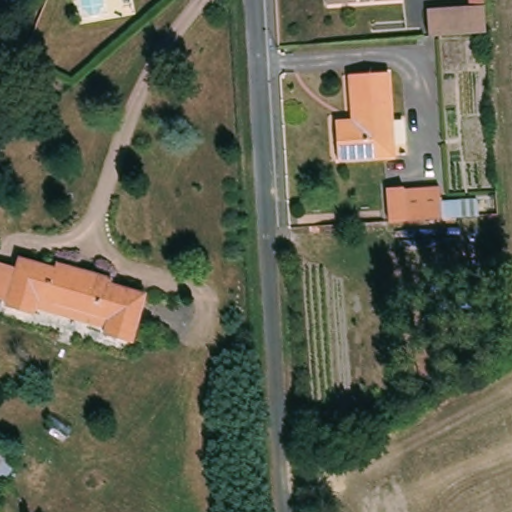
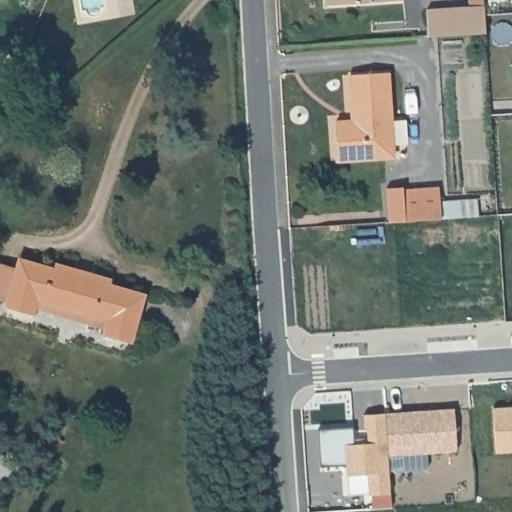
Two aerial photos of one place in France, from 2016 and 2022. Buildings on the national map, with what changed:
unchanged [(327,0),(397,0),(327,5),(327,0)]
unchanged [(470,6),(470,0),(484,0),(484,5),(470,6)]
unchanged [(484,6),(486,31),(485,31),(484,31),(483,32),(483,33),(459,35),(429,36),(427,10),(470,6),(484,6)]
unchanged [(393,156),(337,160),(335,121),(352,121),(349,74),(388,72),(393,156)]
unchanged [(7,105),(18,111),(14,120),(2,114),(7,105)]
unchanged [(483,217),(482,217),(457,218),(434,220),(420,221),(402,222),(400,188),(418,187),(418,189),(454,187),(455,203),(482,201),(483,217)]
unchanged [(32,315),(6,307),(8,300),(0,297),(0,266),(16,271),(19,259),(54,269),(56,264),(111,280),(110,284),(144,294),(131,342),(104,335),(106,327),(35,307),(32,315)]
new [(512,451),(496,452),(493,407),(512,406),(512,451)]
new [(386,413),(455,409),(458,451),(388,455),(386,413)]
new [(391,493),(369,493),(368,473),(349,473),(348,464),(321,465),(318,430),(354,427),(355,444),(370,444),(368,428),(365,429),(363,415),(386,413),(388,455),(391,493)]
unchanged [(19,468),(0,496),(0,455),(19,468)]

